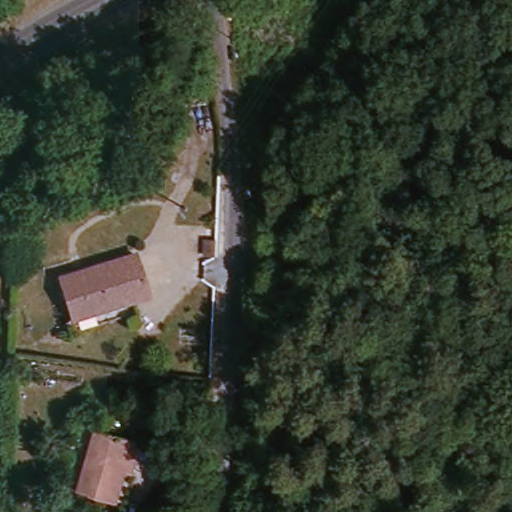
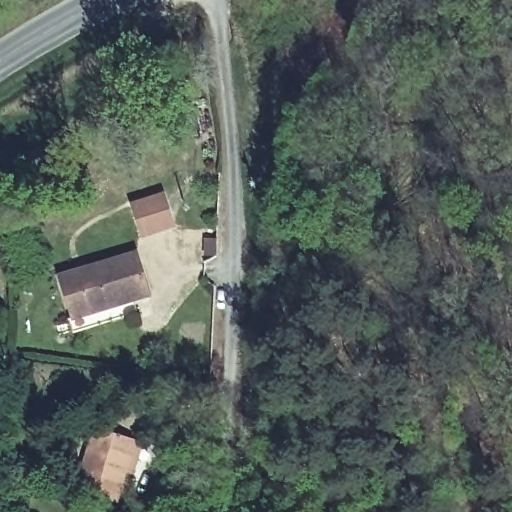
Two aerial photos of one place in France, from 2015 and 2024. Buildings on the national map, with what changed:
new [(167,192),(177,223),(162,228),(145,233),(135,203),(151,197),(167,192)]
unchanged [(135,259),(146,293),(74,315),(64,281),(135,259)]
unchanged [(73,494),(92,432),(134,443),(144,445),(135,477),(125,474),(115,505),(73,494)]

